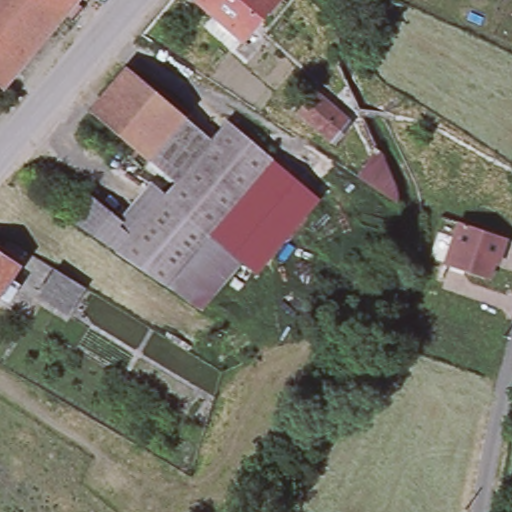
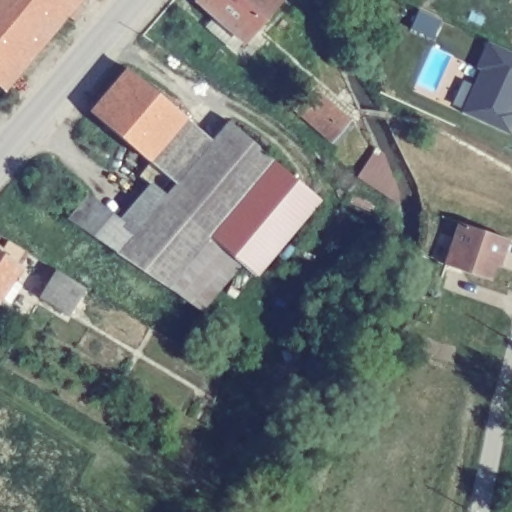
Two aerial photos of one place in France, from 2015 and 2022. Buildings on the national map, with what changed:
unchanged [(23,66),(0,48),(0,0),(43,0),(64,18),(23,66)]
unchanged [(43,0),(80,0),(64,18),(43,0)]
unchanged [(192,0),(273,0),(239,39),(192,0)]
new [(512,132),(511,135),(460,112),(479,69),(476,67),(488,40),(512,51),(512,132)]
unchanged [(23,66),(0,92),(0,48),(23,66)]
unchanged [(146,162),(89,115),(126,71),(181,120),(146,162)]
unchanged [(343,121),(328,140),(293,112),(308,92),(343,121)]
unchanged [(146,162),(181,120),(210,142),(174,185),(146,162)]
unchanged [(174,185),(210,142),(226,123),(272,162),(208,238),(161,200),(174,185)]
unchanged [(378,149),(396,201),(359,175),(378,149)]
unchanged [(235,260),(208,238),(272,162),(319,198),(258,273),(235,260)]
unchanged [(116,254),(69,214),(88,193),(134,232),(116,254)]
unchanged [(235,260),(193,308),(164,289),(114,256),(116,254),(134,232),(161,200),(208,238),(235,260)]
unchanged [(482,279),(443,266),(458,223),(505,239),(499,258),(495,256),(489,276),(487,281),(482,279)]
unchanged [(18,259),(0,291),(0,248),(18,259)]
unchanged [(84,278),(66,306),(40,291),(58,261),(84,278)]

